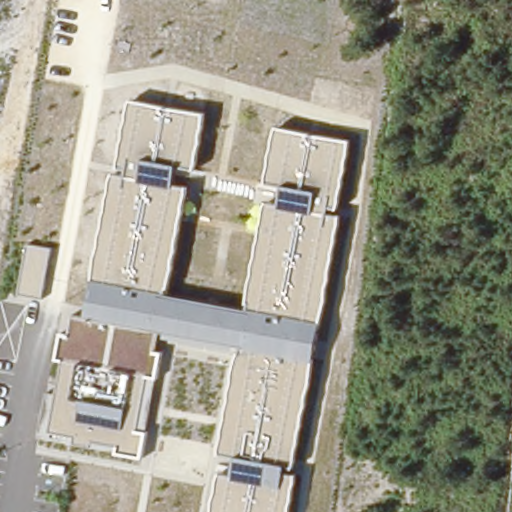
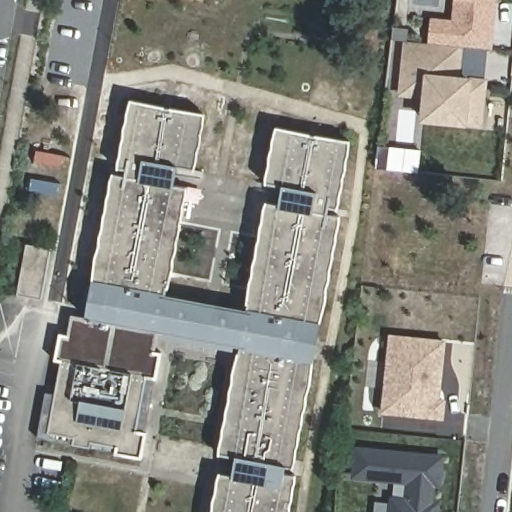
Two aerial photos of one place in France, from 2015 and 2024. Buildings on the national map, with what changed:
new [(425,95),(401,93),(406,43),(426,45),(428,21),(451,24),(454,0),(495,0),(494,3),(493,19),(490,49),(461,47),(460,47),(457,78),(484,80),(480,125),(445,121),(423,119),(424,106),(425,95)]
unchanged [(177,166),(174,186),(173,186),(187,188),(166,293),(246,307),(266,200),(278,203),(281,204),(286,185),(282,185),(266,182),(277,127),(349,140),(339,208),(330,207),(329,215),(340,216),(293,473),(296,474),(290,512),(212,512),(219,473),(232,476),(234,476),(237,457),(233,456),(218,454),(238,349),(161,333),(157,334),(154,351),(160,353),(141,457),(115,454),(116,450),(113,451),(38,438),(46,393),(57,395),(63,361),(55,360),(61,335),(67,336),(72,316),(84,318),(86,315),(112,174),(125,175),(127,167),(118,166),(130,100),(206,113),(196,170),(177,166)]
new [(51,249),(41,299),(17,295),(26,244),(51,249)]
new [(439,401),(445,402),(444,419),(384,413),(389,360),(391,337),(406,339),(445,343),(442,375),(440,389),(439,401)]
new [(410,502),(412,482),(357,477),(359,450),(444,458),(441,485),(439,505),(439,512),(394,512),(395,500),(410,502)]

